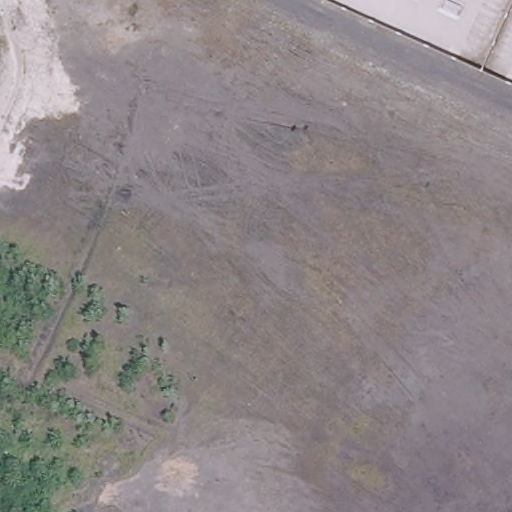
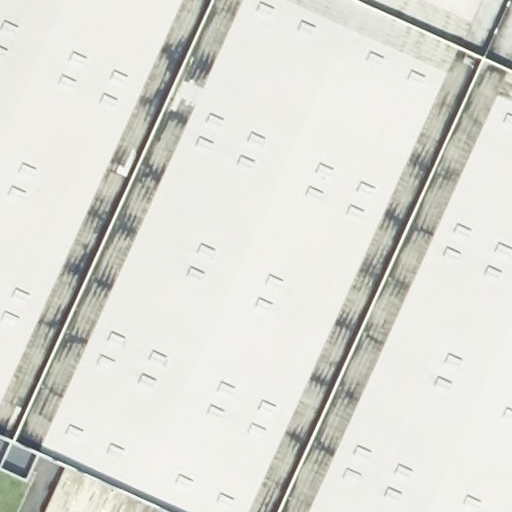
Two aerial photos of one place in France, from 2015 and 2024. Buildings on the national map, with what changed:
new [(150,512),(0,444),(0,0),(317,0),(512,88),(512,512),(150,512)]
unchanged [(317,0),(512,0),(512,88),(317,0)]

